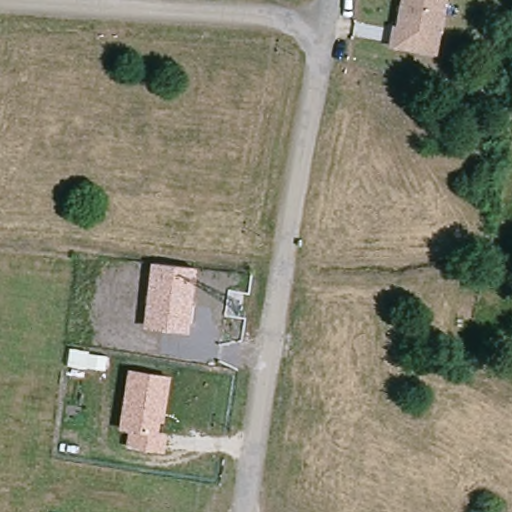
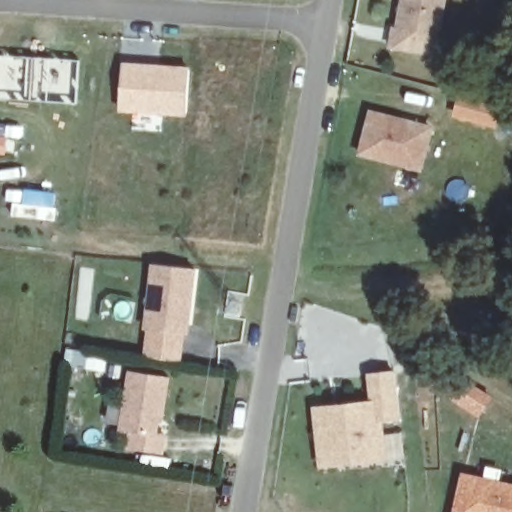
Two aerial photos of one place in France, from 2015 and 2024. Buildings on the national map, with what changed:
unchanged [(439,56),(387,49),(391,27),(397,28),(401,0),(447,0),(439,56)]
new [(0,55),(80,60),(76,104),(0,99),(0,55)]
new [(121,60),(190,66),(186,116),(117,111),(121,60)]
new [(452,117),(457,93),(502,105),(497,128),(452,117)]
new [(357,154),(367,108),(433,124),(422,170),(357,154)]
new [(20,139),(7,137),(6,154),(0,154),(0,123),(22,125),(20,139)]
new [(6,188),(57,191),(56,208),(4,201),(6,188)]
unchanged [(190,334),(142,329),(151,263),(197,268),(190,334)]
unchanged [(164,422),(161,422),(159,431),(167,433),(165,452),(127,447),(130,431),(119,429),(128,369),(170,377),(164,422)]
new [(318,466),(311,405),(368,399),(366,372),(395,369),(401,419),(382,419),(387,459),(318,466)]
new [(451,512),(460,471),(482,475),(485,464),(502,467),(500,478),(512,481),(512,512),(451,512)]

